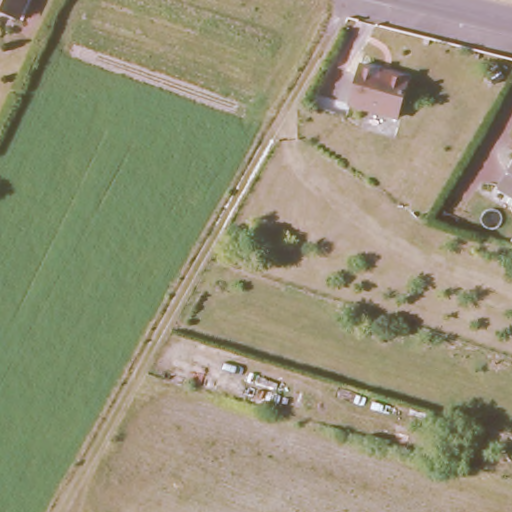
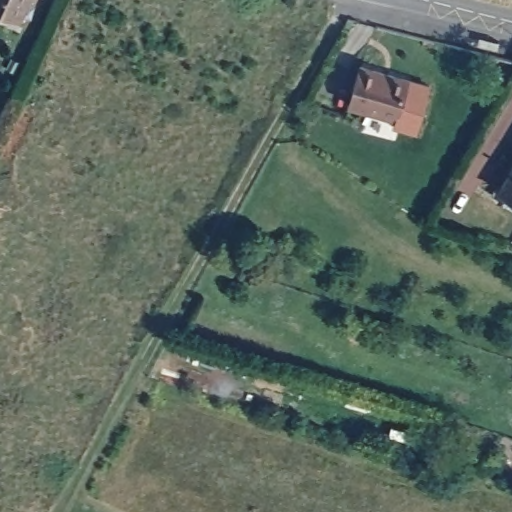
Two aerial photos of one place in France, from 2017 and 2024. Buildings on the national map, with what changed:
unchanged [(0,8),(0,0),(31,0),(23,18),(0,8)]
unchanged [(398,118),(350,105),(361,65),(409,78),(398,118)]
unchanged [(506,187),(499,183),(512,162),(512,200),(502,194),(506,187)]

